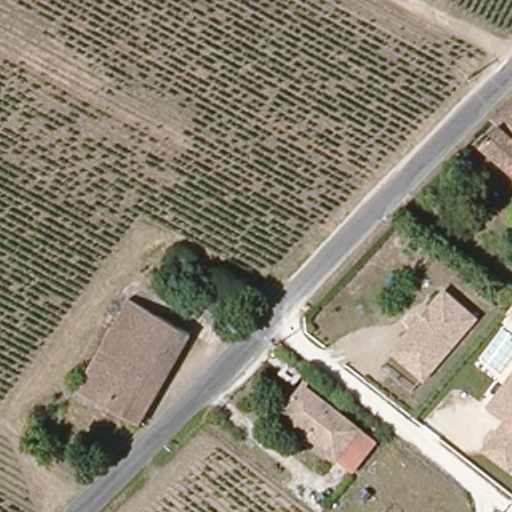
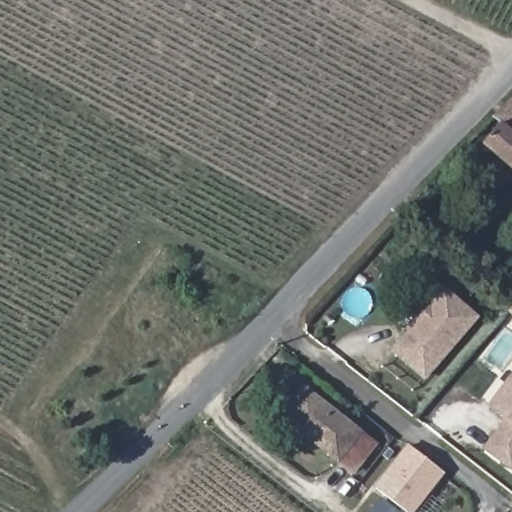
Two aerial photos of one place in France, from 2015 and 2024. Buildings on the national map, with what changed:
unchanged [(502,129),(492,119),(512,103),(512,169),(484,146),(502,129)]
unchanged [(388,360),(399,345),(447,283),(478,308),(431,370),(419,385),(388,360)]
demolished [(104,413),(108,405),(77,387),(130,297),(188,331),(136,421),(121,412),(116,421),(104,413)]
demolished [(212,303),(234,315),(227,330),(204,317),(212,303)]
unchanged [(485,451),(508,421),(491,407),(512,381),(512,470),(511,471),(485,451)]
unchanged [(286,418),(306,392),(373,447),(354,472),(286,418)]
new [(412,512),(411,512),(375,484),(406,443),(443,472),(412,512)]

